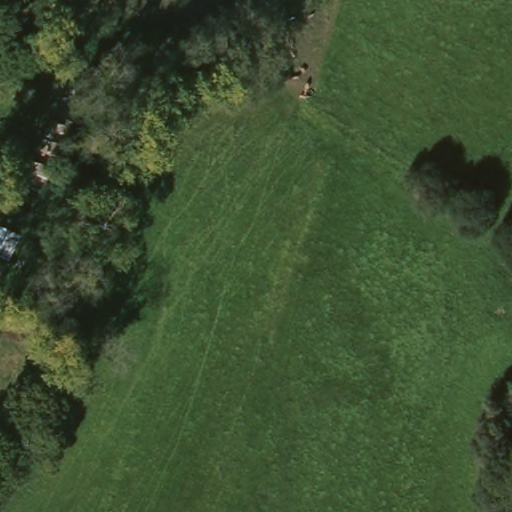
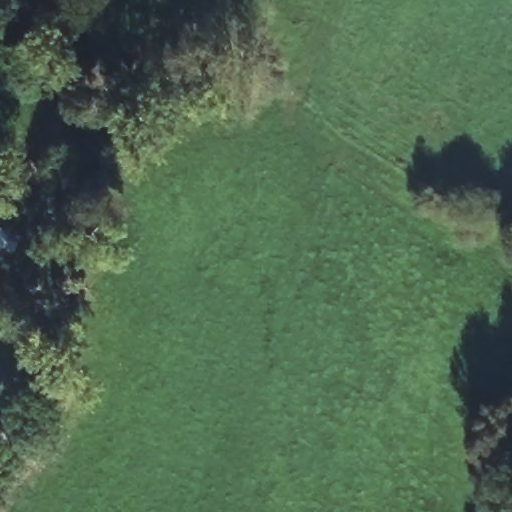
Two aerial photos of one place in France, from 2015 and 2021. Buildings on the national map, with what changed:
unchanged [(19,241),(7,269),(0,266),(0,231),(19,241)]

